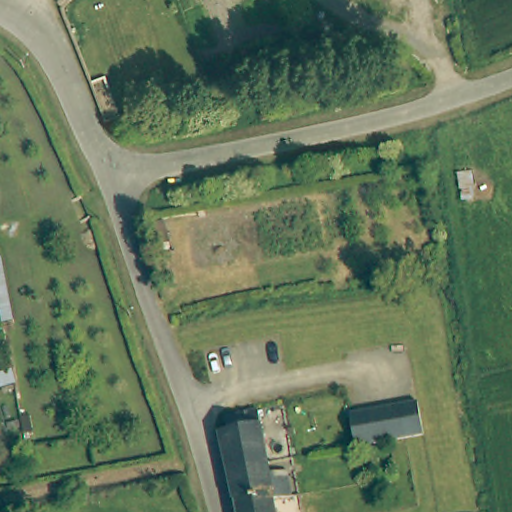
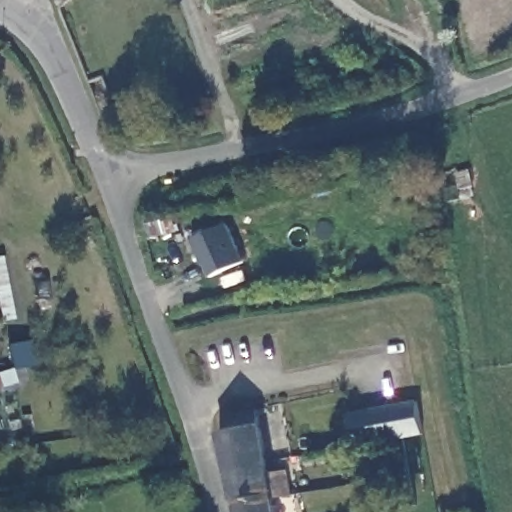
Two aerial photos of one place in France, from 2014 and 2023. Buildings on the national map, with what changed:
unchanged [(103,71),(119,114),(102,119),(88,75),(103,71)]
new [(222,220),(240,257),(207,273),(201,260),(198,261),(187,236),(222,220)]
unchanged [(411,403),(415,433),(354,445),(349,415),(411,403)]
unchanged [(217,432),(227,430),(224,415),(255,408),(265,467),(286,465),(292,492),(274,496),(278,512),(233,512),(217,432)]

